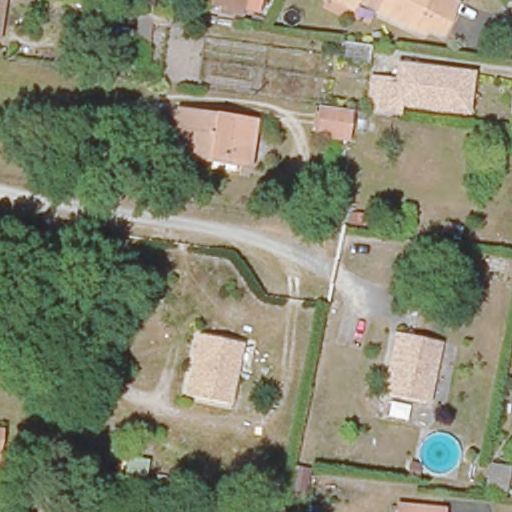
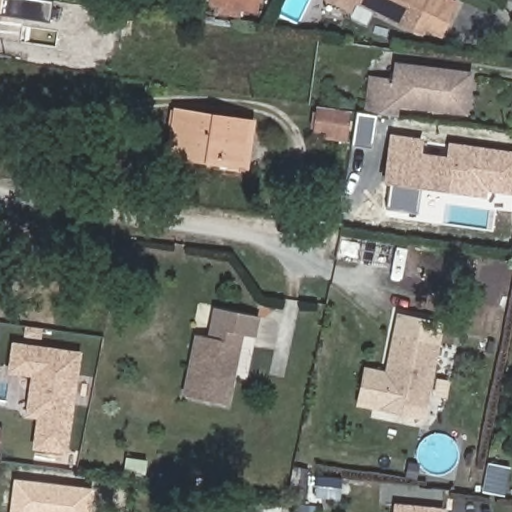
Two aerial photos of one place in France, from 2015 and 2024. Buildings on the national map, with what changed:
unchanged [(239,6),(205,3),(206,0),(239,0),(239,6)]
unchanged [(343,3),(337,0),(344,0),(343,3)]
unchanged [(446,7),(436,27),(420,20),(416,26),(403,20),(402,23),(355,0),(449,0),(446,7)]
unchanged [(143,72),(125,70),(129,47),(113,45),(115,39),(117,27),(131,28),(134,13),(150,16),(143,72)]
unchanged [(363,63),(337,60),(340,41),(366,45),(363,63)]
unchanged [(370,81),(393,84),(395,65),(467,74),(463,111),(393,103),(392,115),(370,112),(367,111),(370,81)]
unchanged [(345,108),(341,135),(313,131),(317,104),(345,108)]
unchanged [(242,160),(208,156),(207,159),(169,154),(170,144),(175,110),(247,121),(243,154),(242,160)]
new [(483,192),(482,198),(421,189),(418,210),(393,206),(396,185),(382,183),(390,135),(425,140),(423,152),(446,156),(448,142),(512,152),(512,196),(483,192)]
new [(425,421),(357,407),(365,367),(385,371),(397,312),(446,322),(425,421)]
demolished [(437,336),(428,397),(387,391),(396,330),(437,336)]
unchanged [(240,340),(227,401),(186,392),(200,331),(240,340)]
new [(67,454),(32,450),(37,418),(25,417),(31,376),(7,372),(11,341),(83,351),(67,454)]
unchanged [(0,435),(0,428),(1,428),(0,435)]
unchanged [(491,474),(511,477),(508,501),(488,499),(489,488),(491,474)]
new [(94,489),(91,512),(10,512),(14,479),(94,489)]

